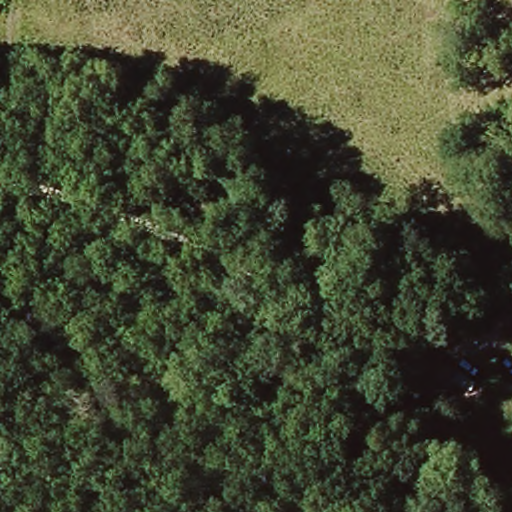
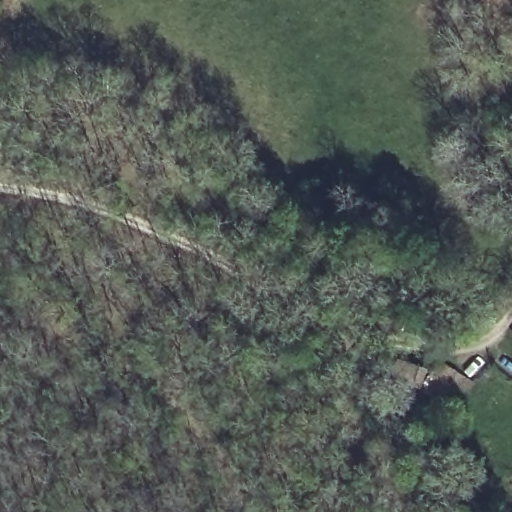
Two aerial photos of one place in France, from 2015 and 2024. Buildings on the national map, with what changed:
unchanged [(437,359),(474,380),(462,400),(423,379),(437,359)]

